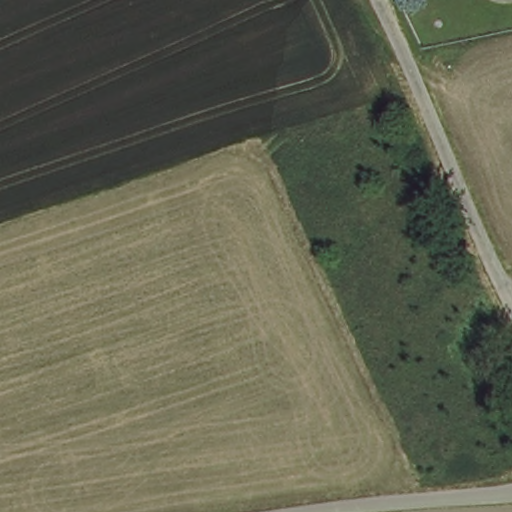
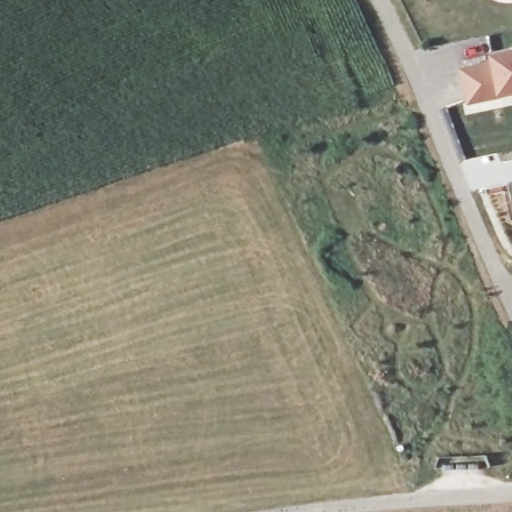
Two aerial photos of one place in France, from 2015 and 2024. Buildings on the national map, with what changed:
new [(486,60),(484,50),(512,45),(512,93),(465,103),(457,66),(486,60)]

